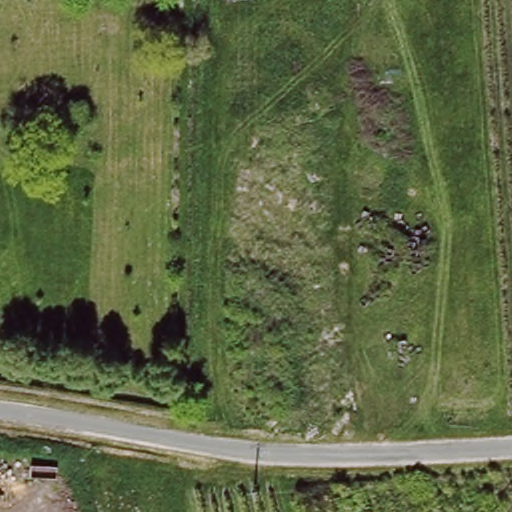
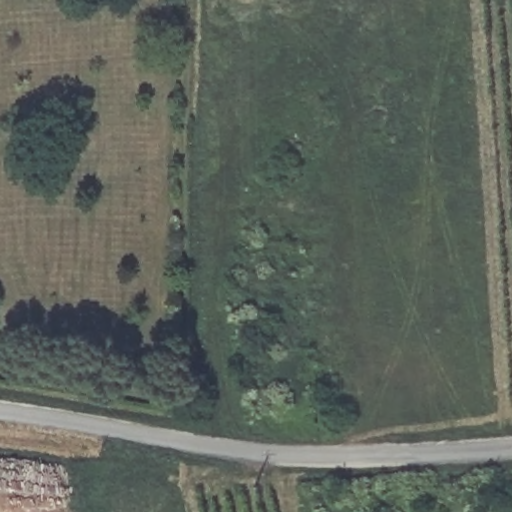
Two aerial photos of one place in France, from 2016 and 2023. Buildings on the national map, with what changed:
unchanged [(115,35),(100,35),(101,14),(115,14),(115,35)]

